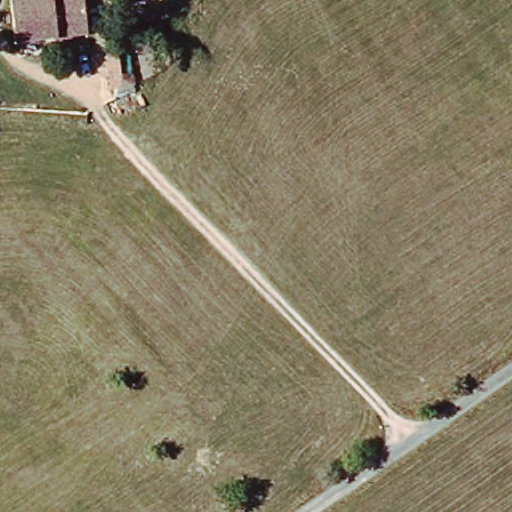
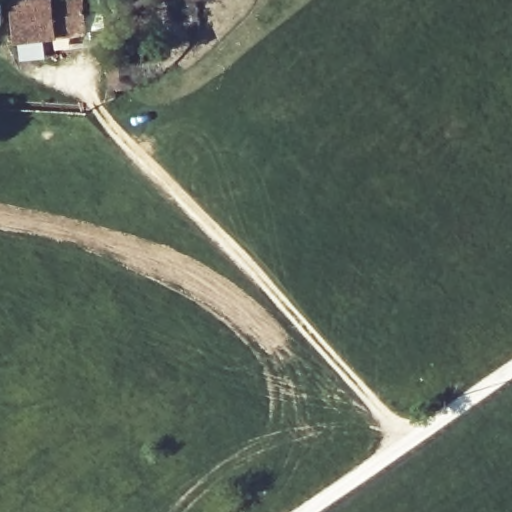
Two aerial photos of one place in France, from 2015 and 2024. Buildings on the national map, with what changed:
unchanged [(8,39),(6,0),(82,0),(84,34),(8,39)]

